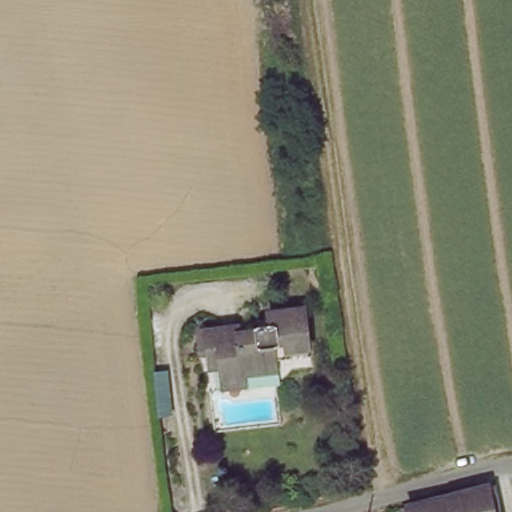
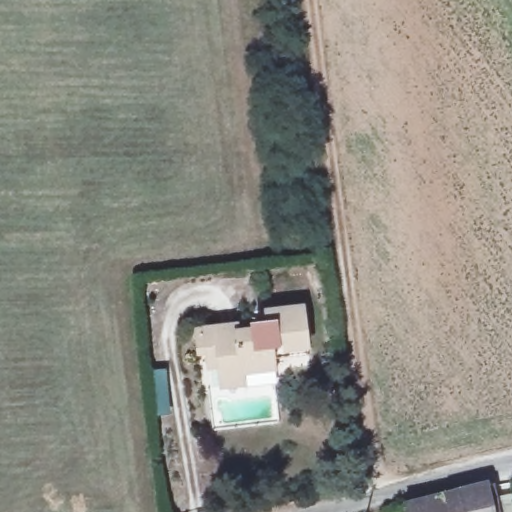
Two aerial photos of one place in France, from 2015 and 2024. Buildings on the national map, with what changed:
unchanged [(220,392),(218,382),(216,368),(209,368),(207,355),(203,333),(235,327),(238,338),(251,335),(251,327),(266,325),(264,315),(299,309),(307,356),(276,361),(278,370),(241,375),(241,379),(243,388),(220,392)]
unchanged [(414,505),(479,485),(483,512),(410,512),(409,510),(414,505)]

